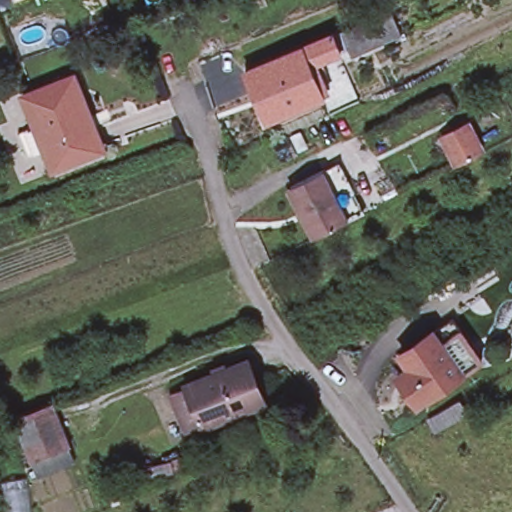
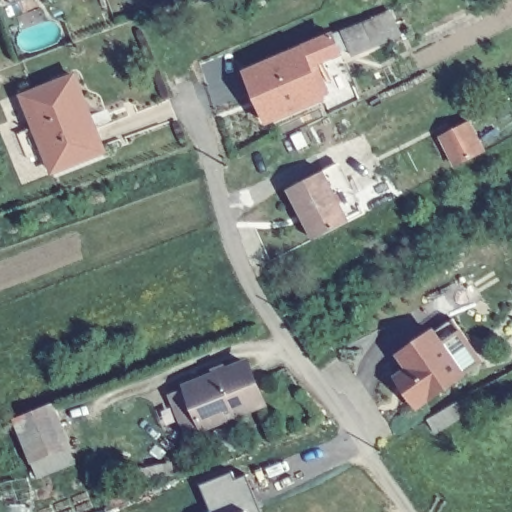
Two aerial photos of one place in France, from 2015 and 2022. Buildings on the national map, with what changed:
unchanged [(335,32),(357,23),(384,11),(393,32),(366,45),(344,55),(335,32)]
unchanged [(326,37),(333,54),(303,67),(318,100),(261,125),(239,74),(296,50),(326,37)]
unchanged [(50,171),(32,126),(21,97),(28,95),(71,79),(83,106),(100,150),(50,171)]
unchanged [(455,165),(441,136),(467,122),(482,152),(455,165)]
unchanged [(313,171),(313,172),(327,164),(328,166),(347,207),(354,212),(337,220),(302,238),(287,209),(291,207),(283,190),(281,186),(313,171)]
unchanged [(416,373),(411,366),(408,362),(440,340),(451,331),(459,342),(465,349),(480,372),(468,380),(428,407),(424,410),(403,382),(416,373)]
unchanged [(170,406),(165,395),(183,388),(241,366),(257,406),(199,428),(181,436),(170,406)]
unchanged [(463,398),(471,413),(439,431),(431,417),(463,398)]
unchanged [(70,453),(30,469),(11,425),(52,409),(70,453)]
new [(210,507),(199,482),(231,468),(235,475),(243,472),(257,505),(247,509),(249,512),(199,512),(210,507)]

